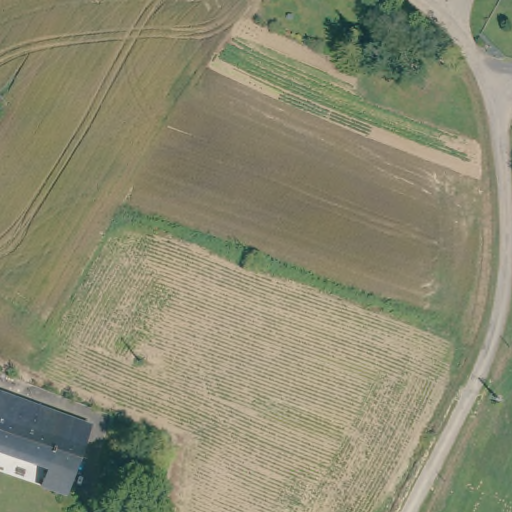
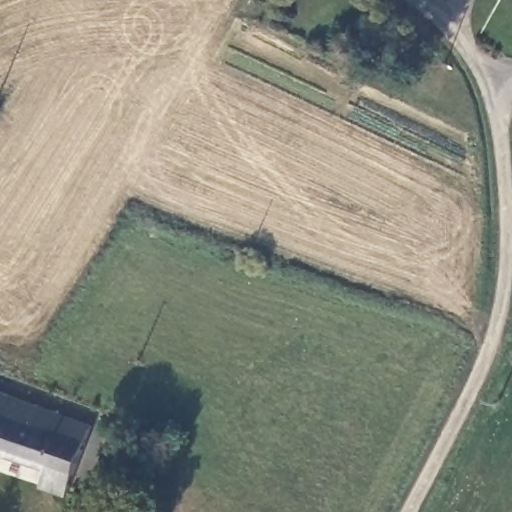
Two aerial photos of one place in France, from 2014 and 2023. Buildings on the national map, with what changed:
unchanged [(62,495),(36,486),(43,469),(0,454),(0,393),(31,407),(86,426),(62,495)]

